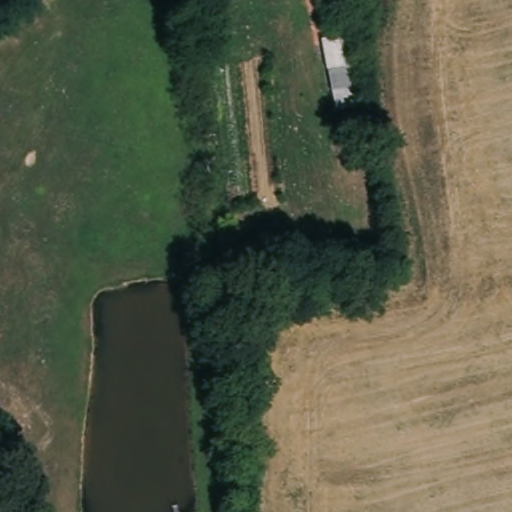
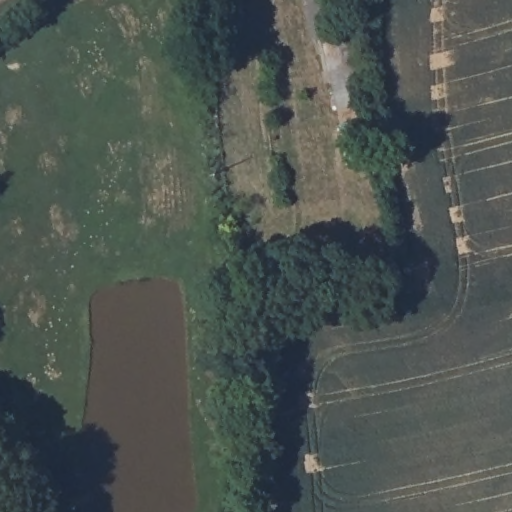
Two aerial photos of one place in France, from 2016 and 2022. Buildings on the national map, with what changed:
unchanged [(336,36),(344,67),(328,73),(321,41),(336,36)]

